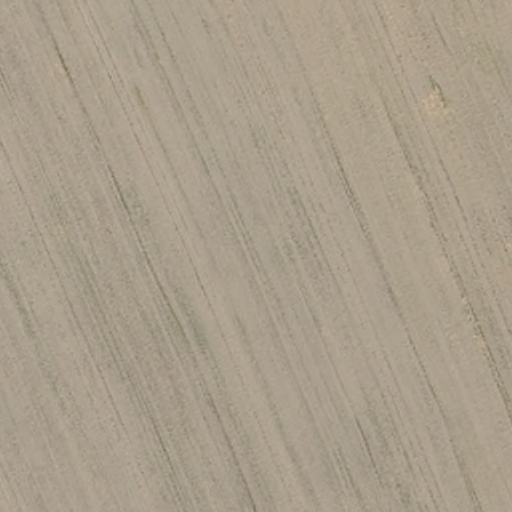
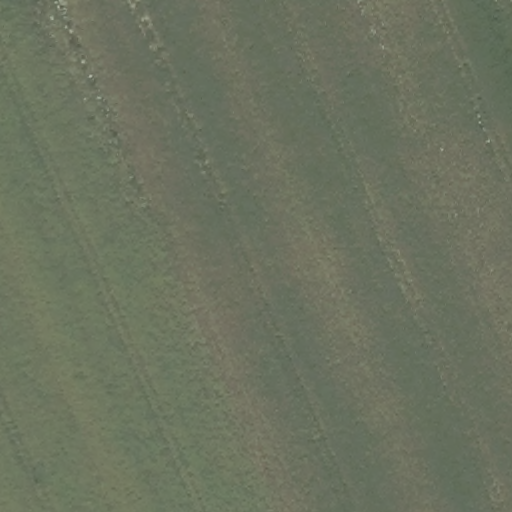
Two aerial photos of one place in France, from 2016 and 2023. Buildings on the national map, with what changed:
[]

